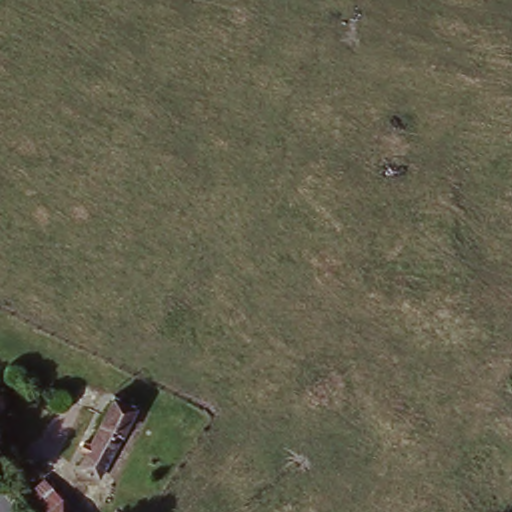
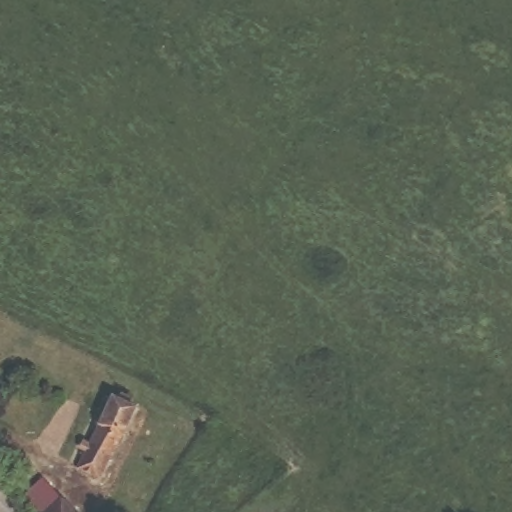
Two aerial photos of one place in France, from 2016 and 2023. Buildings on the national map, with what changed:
unchanged [(134,410),(100,482),(82,472),(115,400),(134,410)]
unchanged [(33,512),(20,496),(47,478),(76,512),(33,512)]

